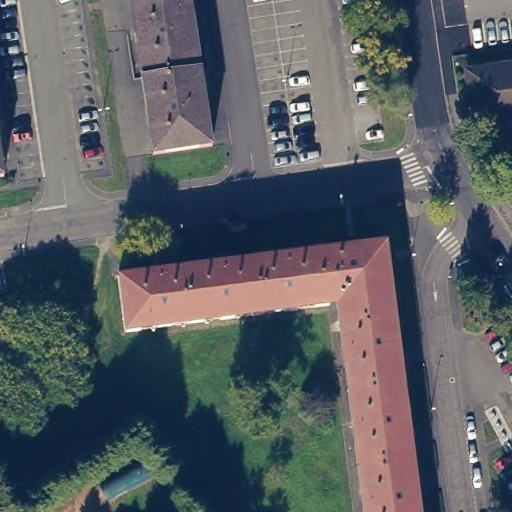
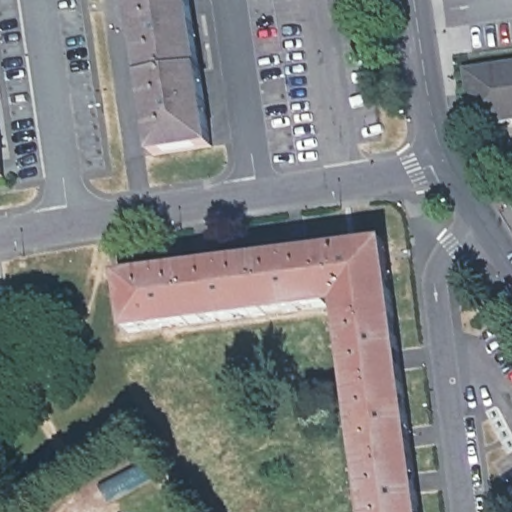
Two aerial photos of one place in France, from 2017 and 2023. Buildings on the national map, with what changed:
unchanged [(153,151),(131,0),(191,0),(212,142),(153,151)]
unchanged [(512,58),(512,118),(473,124),(463,65),(512,58)]
unchanged [(0,173),(0,146),(4,173),(0,173)]
unchanged [(420,512),(364,512),(337,302),(128,328),(127,328),(120,273),(385,239),(420,512)]

